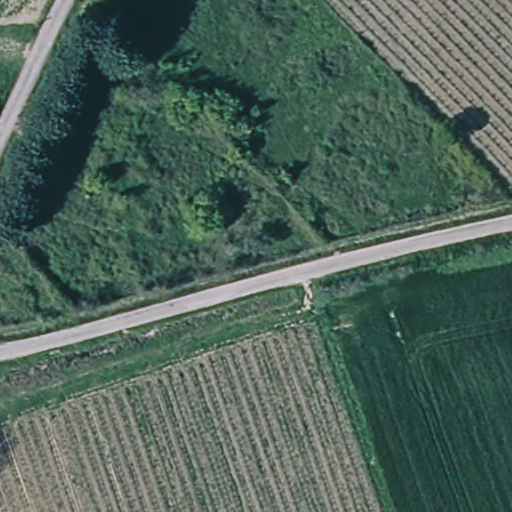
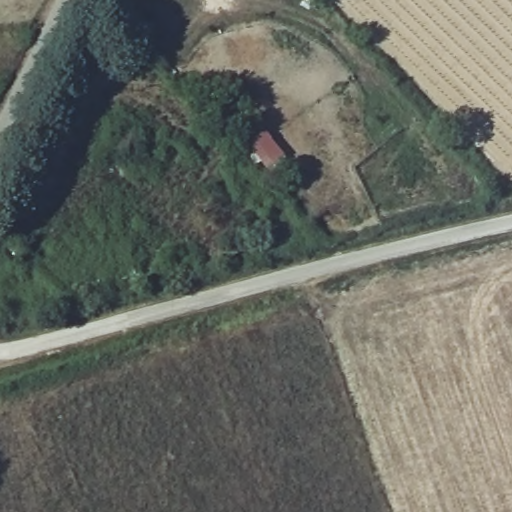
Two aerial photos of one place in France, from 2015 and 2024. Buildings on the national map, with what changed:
unchanged [(123,4),(117,0),(125,0),(123,4)]

